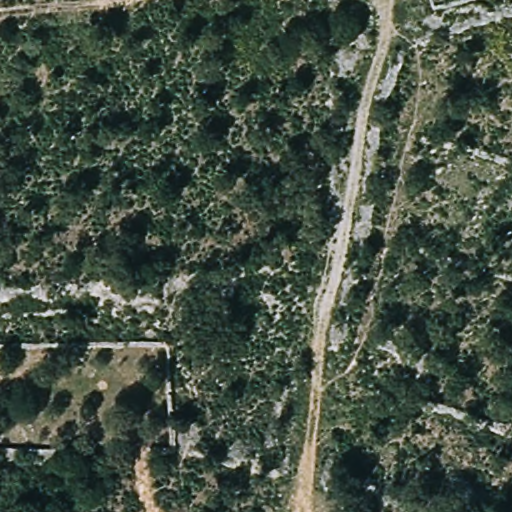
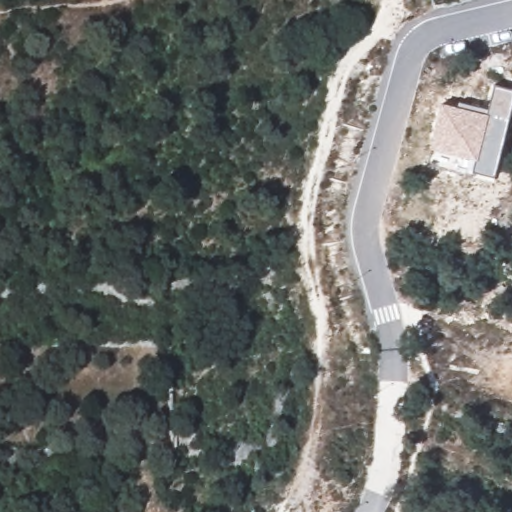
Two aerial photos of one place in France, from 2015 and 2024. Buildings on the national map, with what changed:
new [(488,112),(495,85),(512,89),(512,108),(495,176),(473,171),(477,159),(430,147),(442,102),(488,112)]

